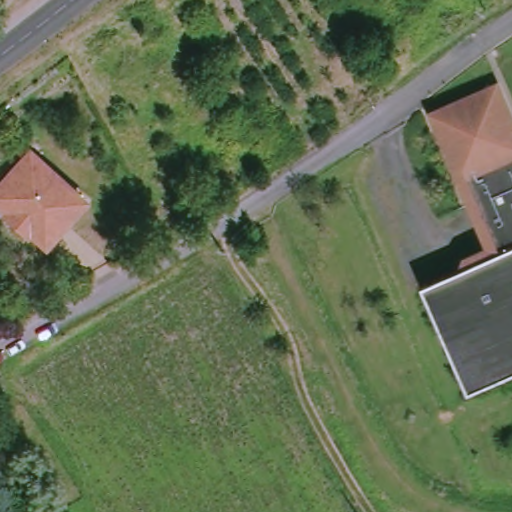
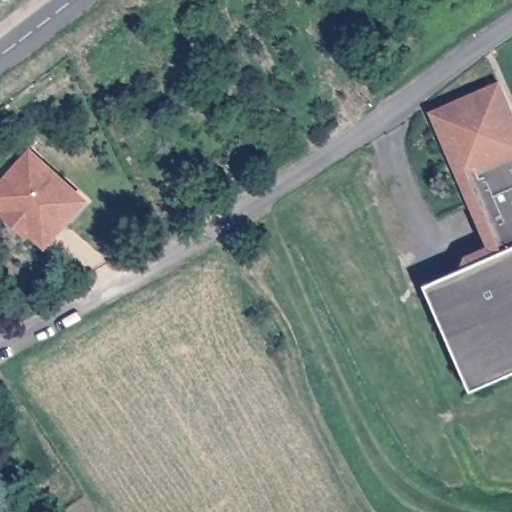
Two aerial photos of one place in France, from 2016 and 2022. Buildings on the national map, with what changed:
unchanged [(495,84),(512,123),(512,372),(467,392),(421,287),(460,267),(460,255),(482,247),(459,188),(429,112),(495,84)]
unchanged [(44,249),(28,235),(25,238),(4,217),(7,214),(0,207),(0,187),(31,155),(85,205),(44,249)]

